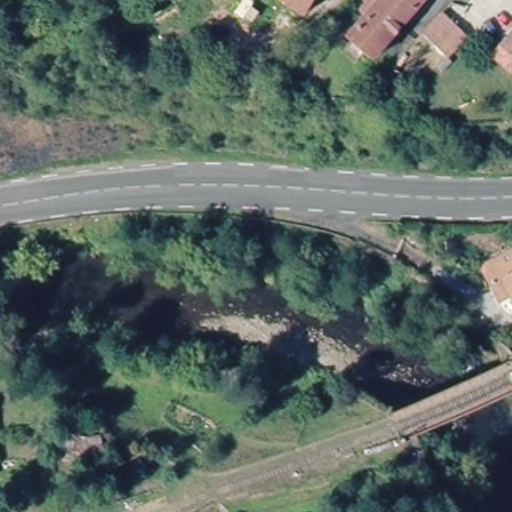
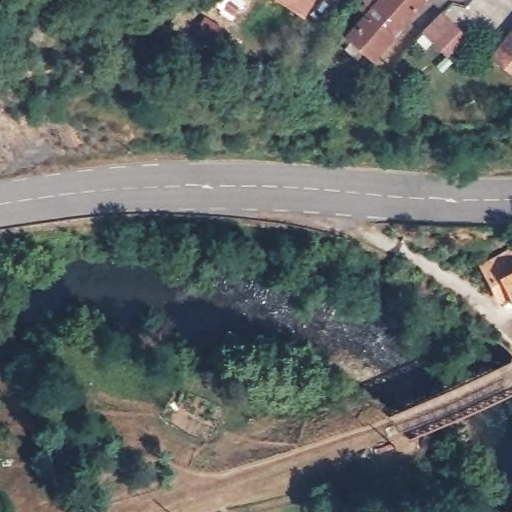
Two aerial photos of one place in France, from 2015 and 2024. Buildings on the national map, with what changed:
unchanged [(309,0),(306,5),(302,12),(284,0),(309,0)]
unchanged [(400,28),(370,61),(345,39),(366,16),(361,11),(368,4),(365,2),(367,0),(421,0),(423,2),(400,28)]
unchanged [(423,34),(422,33),(442,14),(443,16),(464,39),(445,58),(423,34)]
unchanged [(505,69),(492,58),(494,55),(512,34),(512,75),(505,69)]
unchanged [(500,254),(503,260),(512,256),(512,300),(506,288),(495,294),(482,264),(500,254)]

